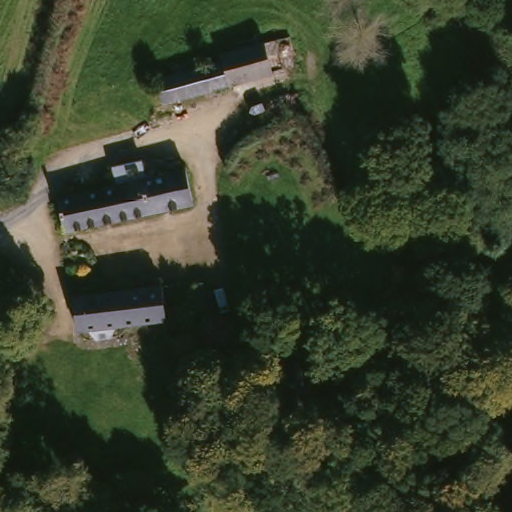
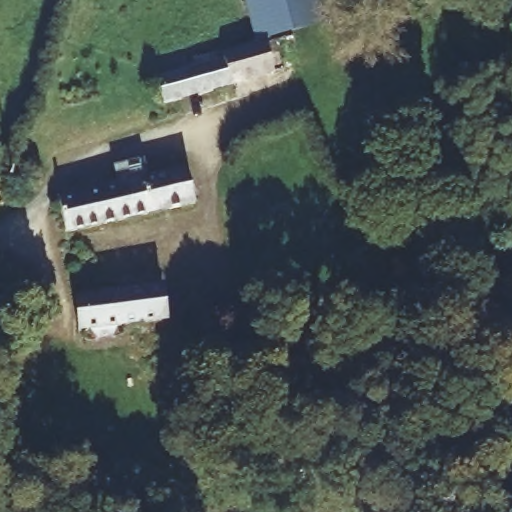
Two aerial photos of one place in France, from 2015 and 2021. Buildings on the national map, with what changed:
new [(259,41),(254,42),(243,0),(327,0),(333,22),(259,41)]
unchanged [(154,105),(148,78),(211,63),(209,52),(258,41),(266,77),(157,104),(154,105)]
unchanged [(54,199),(186,171),(191,203),(60,232),(54,199)]
unchanged [(99,340),(91,330),(81,332),(76,298),(168,285),(172,320),(121,327),(116,338),(99,340)]
unchanged [(224,291),(223,309),(208,309),(209,290),(224,291)]

